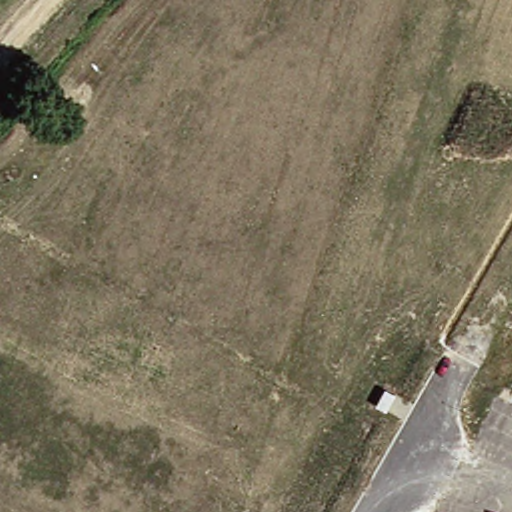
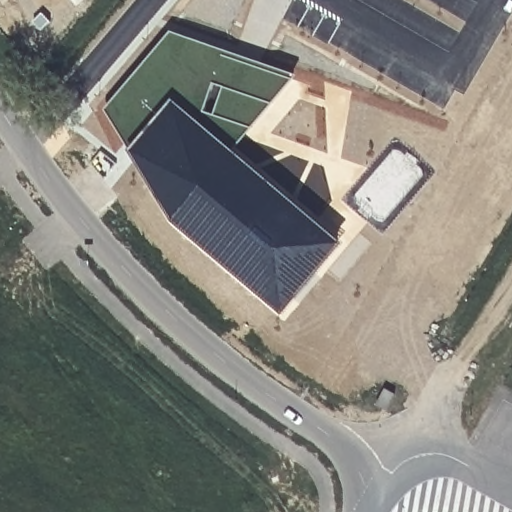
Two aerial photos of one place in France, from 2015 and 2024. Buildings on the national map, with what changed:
new [(296,75),(234,151),(343,244),(283,315),(175,222),(132,151),(107,109),(170,34),(296,75)]

